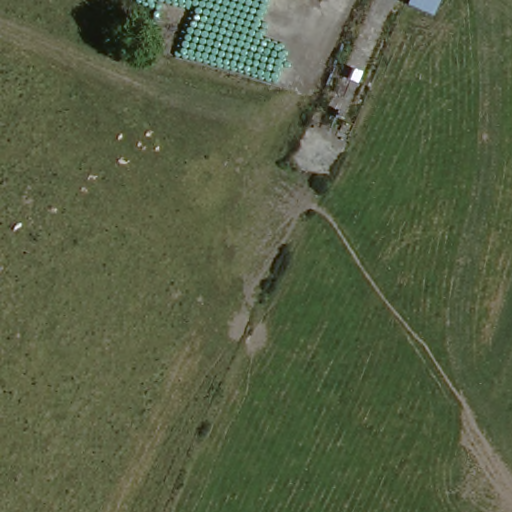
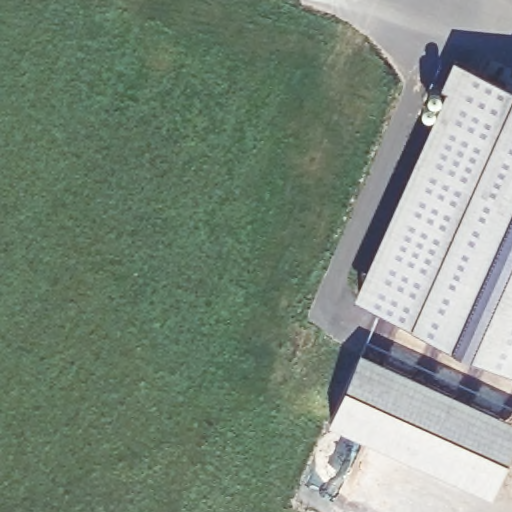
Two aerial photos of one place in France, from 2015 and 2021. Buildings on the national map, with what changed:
new [(355,295),(433,114),(426,113),(424,108),(424,104),(425,102),(431,100),(430,97),(431,89),(441,87),(455,59),(512,85),(512,366),(355,295)]
new [(491,494),(329,421),(361,351),(512,417),(512,448),(491,494)]

